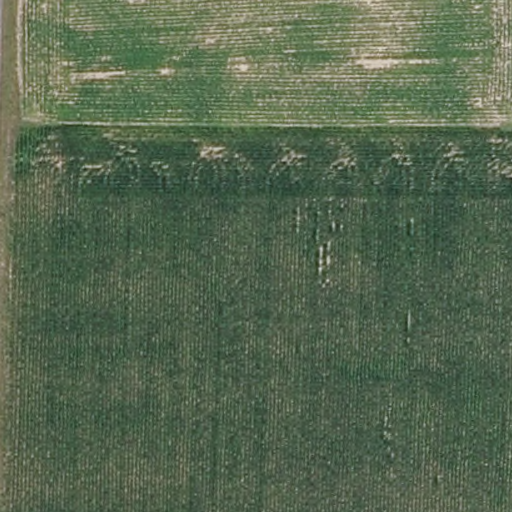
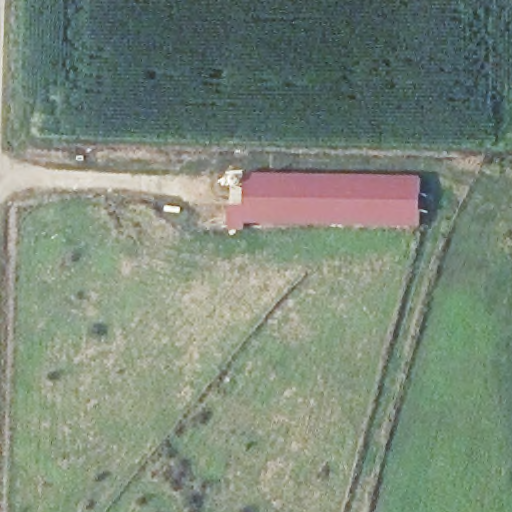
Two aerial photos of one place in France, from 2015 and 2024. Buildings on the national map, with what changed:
new [(244,205),(244,176),(421,178),(421,229),(244,225),(244,232),(228,232),(229,206),(244,205)]

